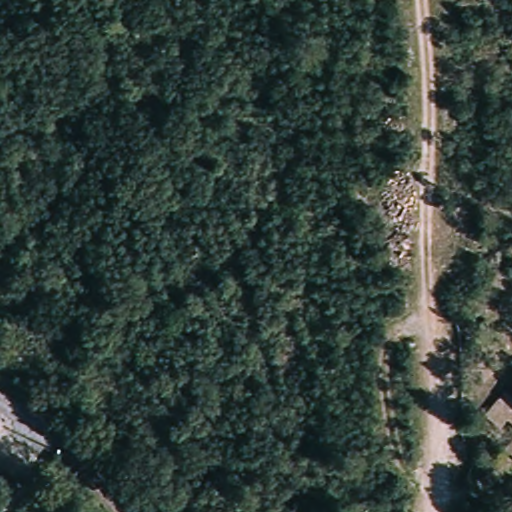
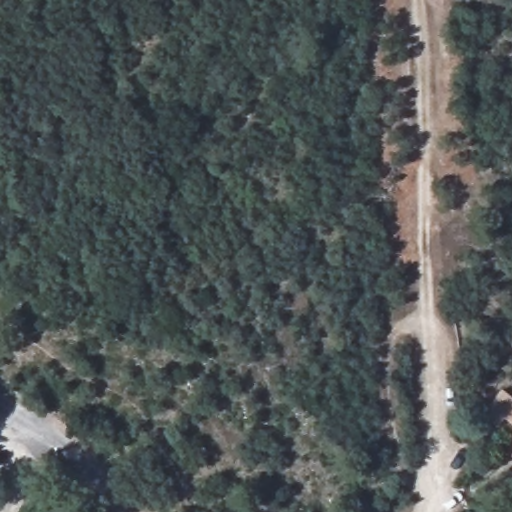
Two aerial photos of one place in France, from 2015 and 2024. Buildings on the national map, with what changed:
unchanged [(497,413),(512,395),(512,425),(507,421),(497,413)]
unchanged [(512,453),(492,438),(507,421),(512,425),(512,453)]

